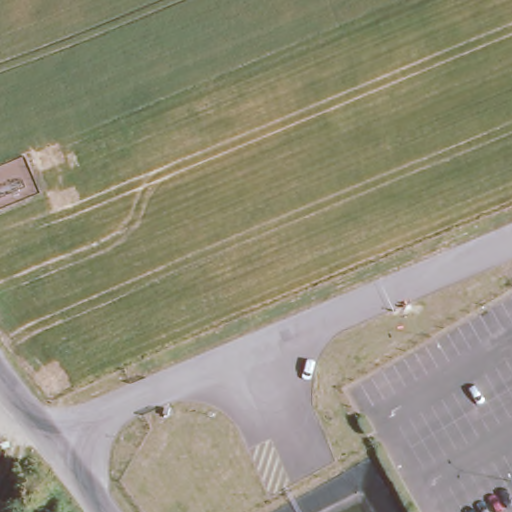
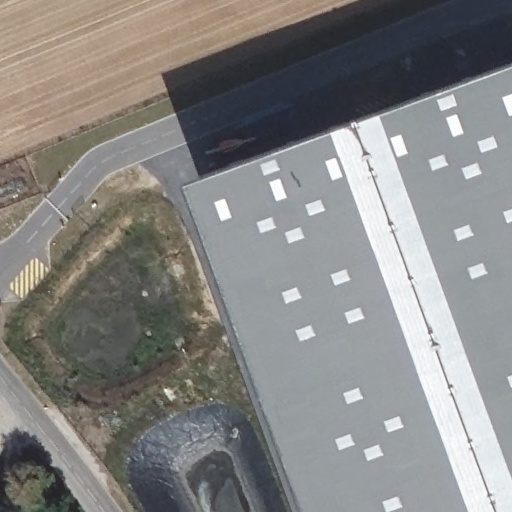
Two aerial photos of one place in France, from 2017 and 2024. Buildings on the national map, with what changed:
new [(208,175),(512,65),(512,512),(331,512),(208,175)]

